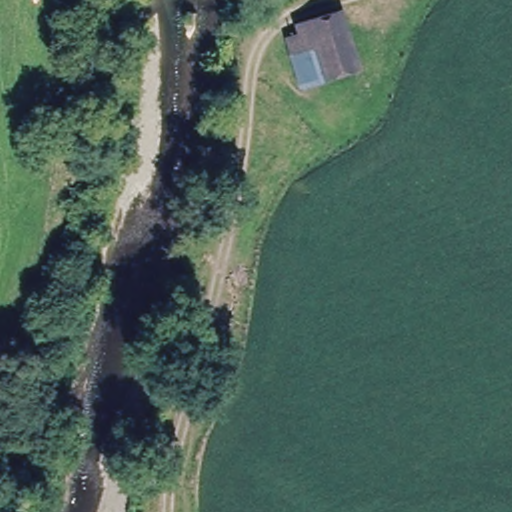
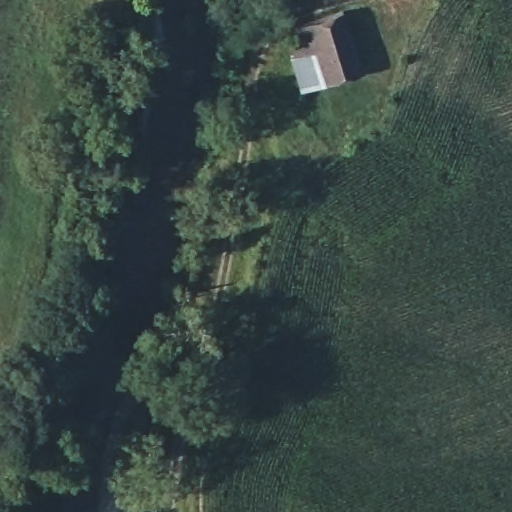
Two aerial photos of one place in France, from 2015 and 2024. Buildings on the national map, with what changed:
unchanged [(294,85),(277,27),(334,5),(353,65),(294,85)]

